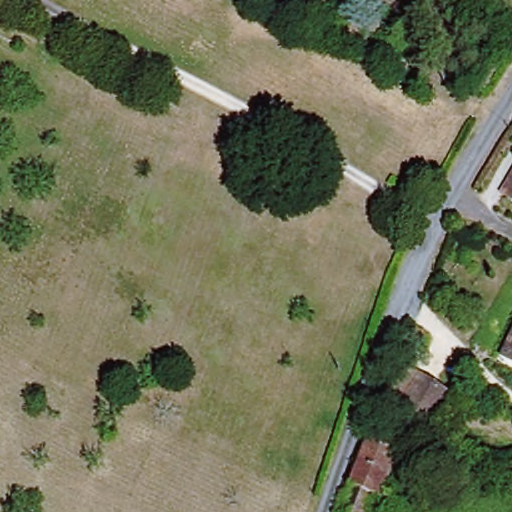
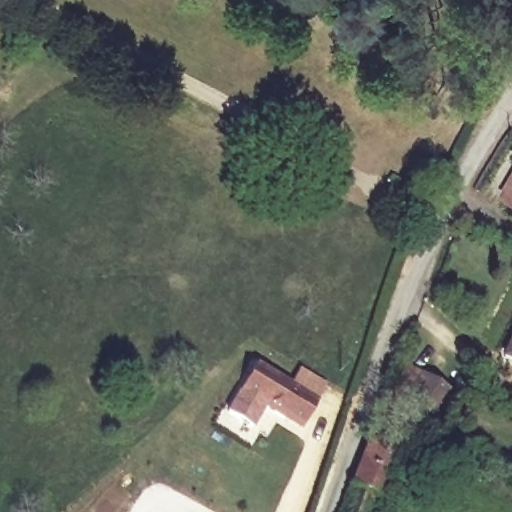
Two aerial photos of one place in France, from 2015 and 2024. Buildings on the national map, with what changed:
unchanged [(512,347),(512,359),(507,356),(512,347)]
new [(285,414),(265,403),(253,426),(229,413),(254,364),(318,396),(308,416),(304,424),(285,414)]
unchanged [(455,394),(430,432),(400,414),(408,401),(395,392),(411,367),(423,375),(424,374),(455,394)]
unchanged [(372,436),(403,447),(386,493),(355,481),(372,436)]
unchanged [(379,512),(344,512),(355,481),(386,493),(379,512)]

